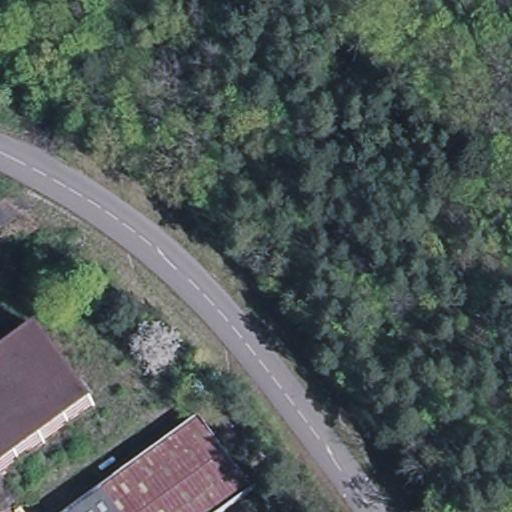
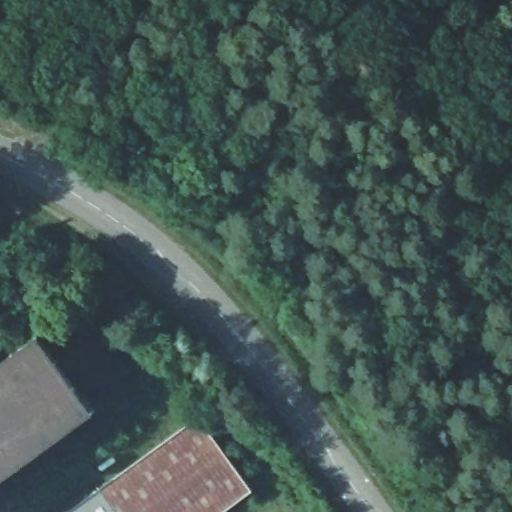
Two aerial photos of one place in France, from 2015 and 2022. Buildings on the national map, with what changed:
unchanged [(98,407),(0,478),(0,362),(43,331),(98,407)]
unchanged [(198,417),(253,492),(224,512),(66,512),(198,417)]

